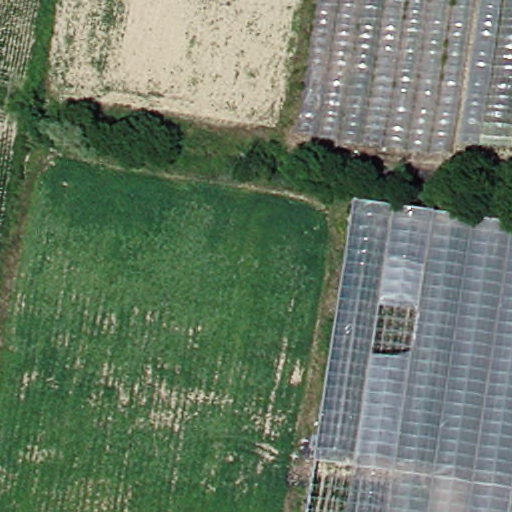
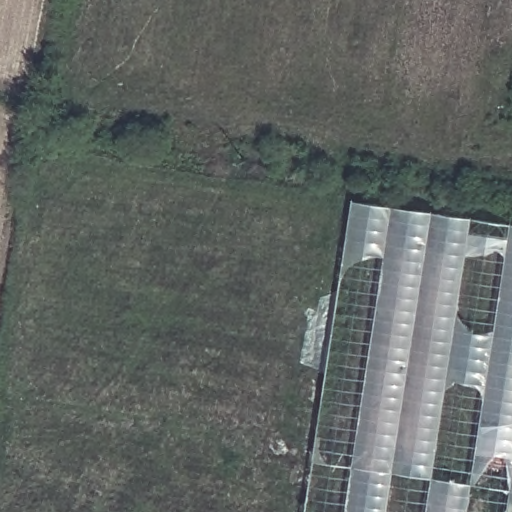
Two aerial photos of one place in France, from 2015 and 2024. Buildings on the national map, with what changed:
demolished [(301,136),(324,0),(500,0),(475,156),(301,136)]
unchanged [(512,222),(512,512),(298,512),(346,198),(512,222)]

